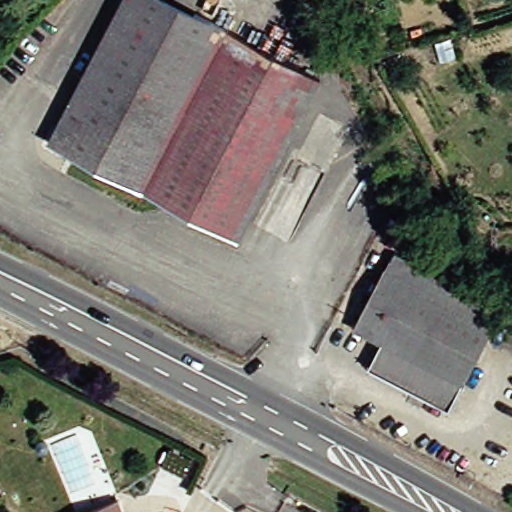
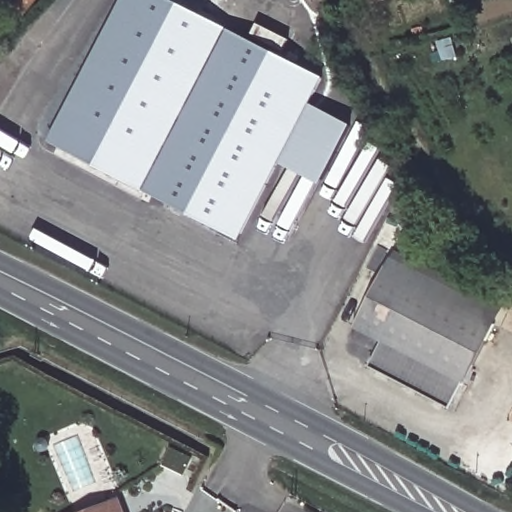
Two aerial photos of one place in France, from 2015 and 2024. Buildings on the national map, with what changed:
unchanged [(235,237),(54,135),(129,0),(179,0),(287,60),(292,51),(303,57),(298,66),(321,78),(235,237)]
new [(308,102),(352,125),(321,185),(275,162),(308,102)]
unchanged [(400,249),(505,305),(496,323),(390,268),(400,249)]
unchanged [(454,406),(377,367),(390,340),(361,325),(390,268),(496,323),(454,406)]
unchanged [(124,512),(100,512),(121,503),(124,512)]

